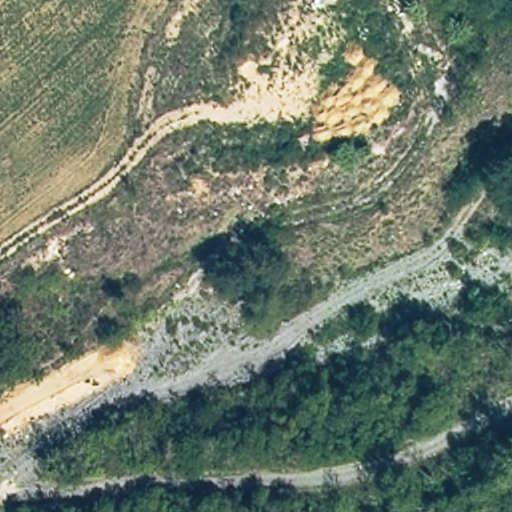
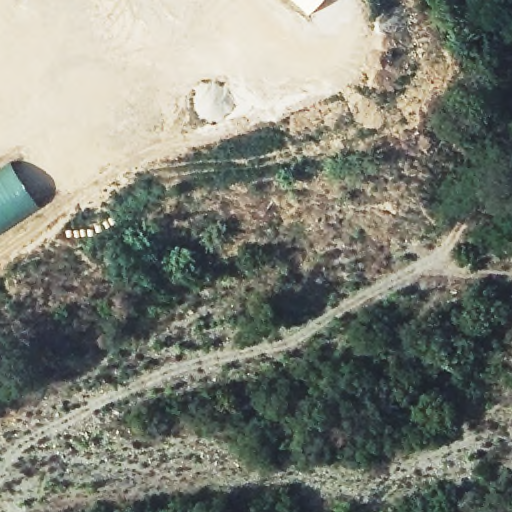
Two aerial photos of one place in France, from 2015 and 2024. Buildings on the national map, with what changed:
new [(41,207),(0,234),(0,171),(12,163),(41,207)]

